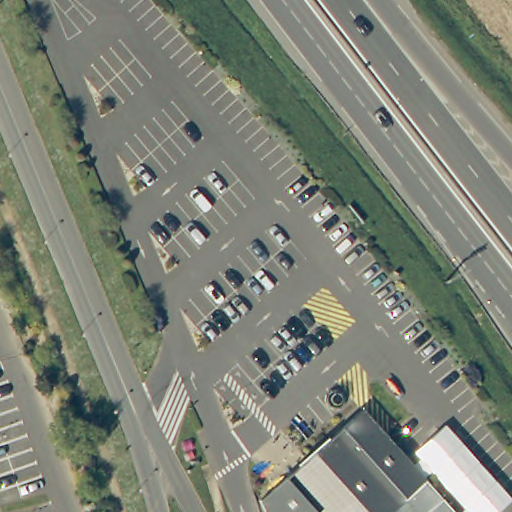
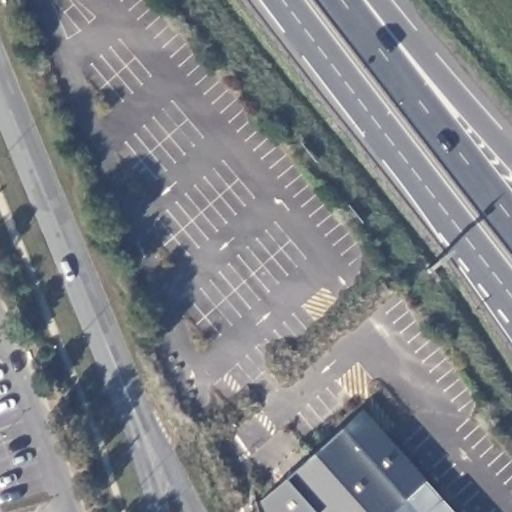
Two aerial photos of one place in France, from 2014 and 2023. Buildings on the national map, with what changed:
unchanged [(365,405),(394,439),(458,512),(269,512),(262,496),(365,405)]

